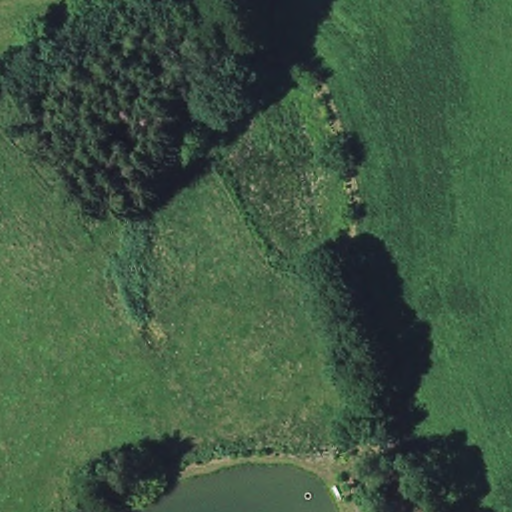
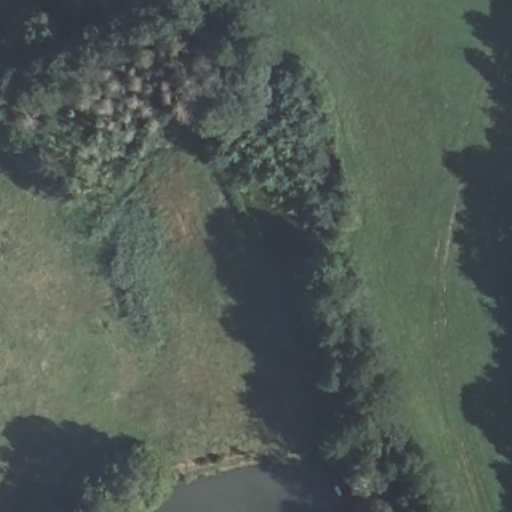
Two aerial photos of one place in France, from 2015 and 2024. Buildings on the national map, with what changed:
[]

